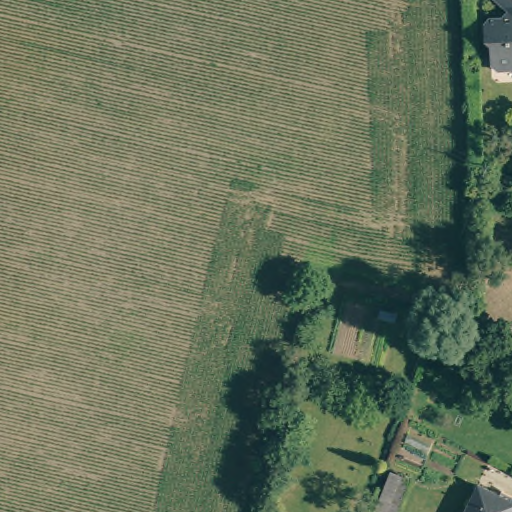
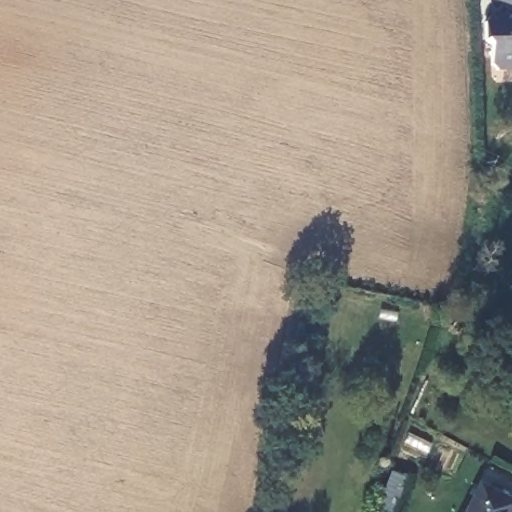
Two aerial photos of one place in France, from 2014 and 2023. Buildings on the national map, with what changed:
unchanged [(503,3),(499,0),(512,0),(512,13),(496,14),(503,3)]
unchanged [(507,66),(500,67),(490,62),(488,39),(483,36),(483,24),(491,15),(496,14),(512,13),(512,61),(511,61),(507,66)]
unchanged [(387,459),(419,474),(403,512),(366,512),(387,459)]
unchanged [(505,512),(464,512),(476,487),(510,502),(505,512)]

